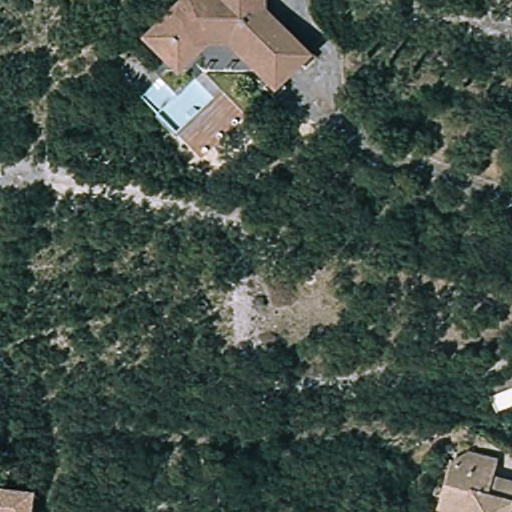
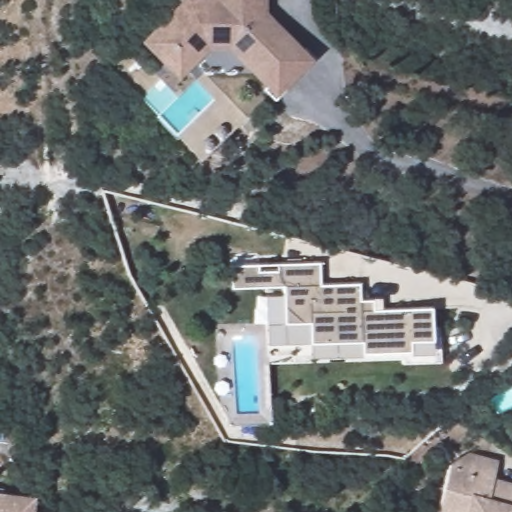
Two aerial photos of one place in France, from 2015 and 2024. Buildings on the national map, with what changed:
unchanged [(139,40),(148,31),(179,0),(254,0),(254,11),(267,22),(275,20),(274,29),(282,26),(280,35),(294,47),(301,39),(314,51),(302,64),(293,56),(277,73),(287,81),(274,95),(261,83),(268,75),(228,39),(192,40),(175,58),(165,68),(139,40)]
new [(438,363),(408,364),(408,357),(292,361),(291,355),(273,355),(270,325),(265,324),(264,287),(231,288),(230,267),(317,263),(317,286),(357,284),(358,299),(371,299),(371,309),(429,307),(430,327),(438,327),(438,363)]
unchanged [(443,500),(455,461),(475,452),(502,462),(497,478),(512,483),(512,512),(447,512),(440,509),(443,500)]
unchanged [(33,497),(31,512),(0,512),(0,493),(33,497)]

